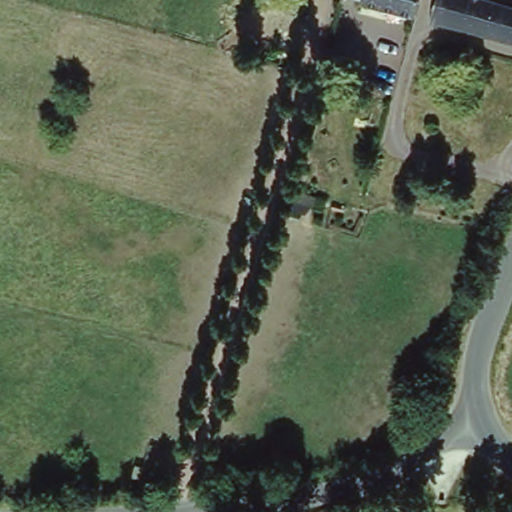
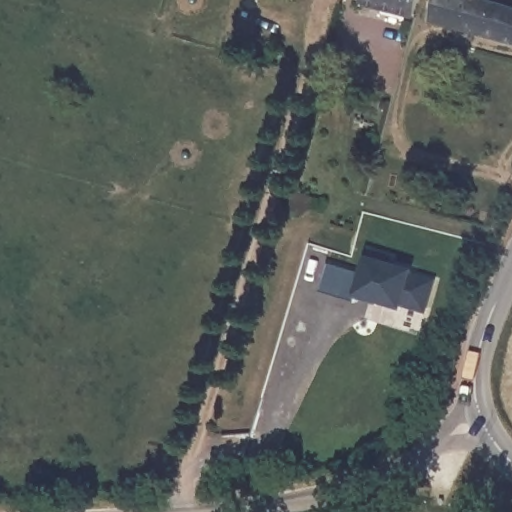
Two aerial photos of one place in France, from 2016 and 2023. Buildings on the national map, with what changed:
unchanged [(359,1),(354,0),(415,0),(410,16),(359,1)]
unchanged [(492,0),(512,6),(512,43),(428,21),(434,0),(492,0)]
unchanged [(320,191),(316,202),(287,193),(289,182),(320,191)]
new [(356,273),(361,254),(413,271),(412,274),(435,282),(426,316),(400,308),(399,312),(354,299),(353,304),(319,293),(328,265),(356,273)]

